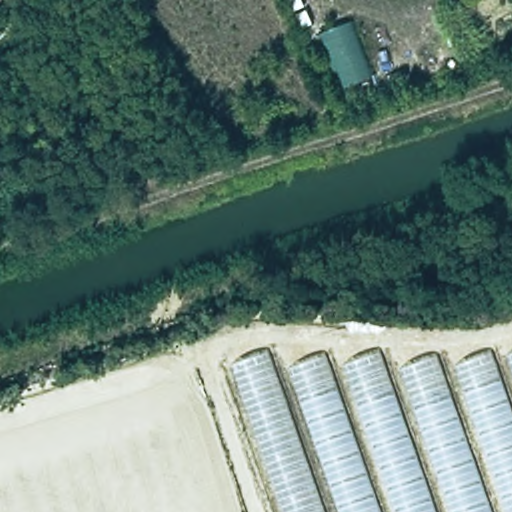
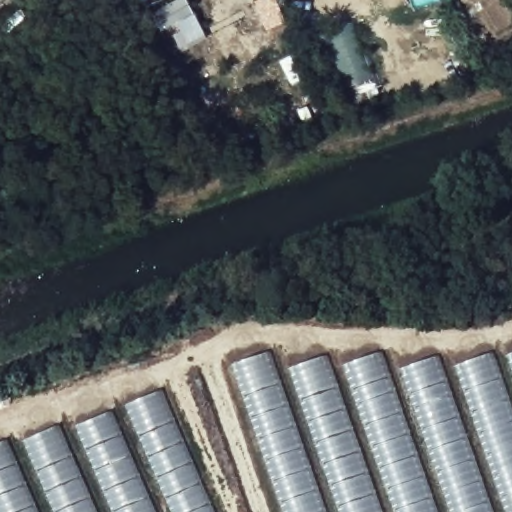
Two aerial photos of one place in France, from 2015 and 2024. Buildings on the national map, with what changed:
unchanged [(267,342),(273,371),(326,357),(332,369),(381,353),(388,373),(439,357),(444,371),(493,354),(495,360),(512,354),(512,512),(282,512),(226,355),(267,342)]
new [(0,512),(0,443),(7,440),(10,448),(60,425),(62,431),(161,390),(214,512),(0,512)]

